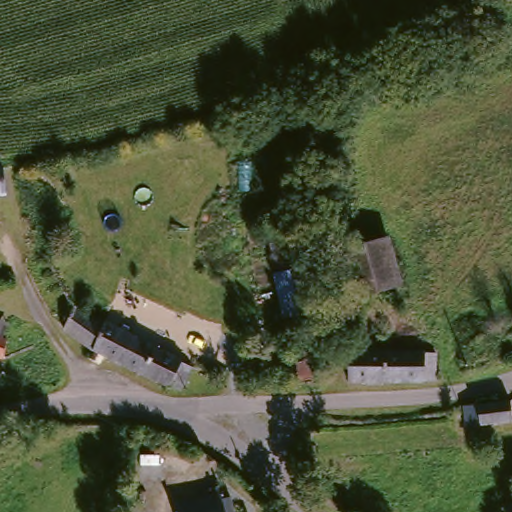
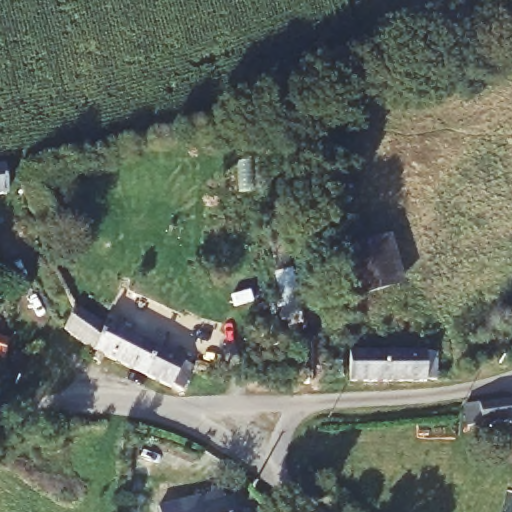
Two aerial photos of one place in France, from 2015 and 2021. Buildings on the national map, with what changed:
unchanged [(0,192),(0,167),(8,166),(8,191),(0,192)]
unchanged [(401,239),(408,288),(356,297),(348,247),(401,239)]
unchanged [(304,262),(316,311),(282,319),(273,269),(304,262)]
unchanged [(78,310),(102,329),(139,345),(130,369),(88,351),(58,329),(78,310)]
unchanged [(0,351),(0,331),(16,334),(13,354),(0,351)]
unchanged [(130,369),(139,345),(178,361),(176,366),(184,369),(183,373),(179,385),(171,383),(169,387),(130,369)]
unchanged [(336,362),(428,354),(431,374),(421,374),(421,383),(338,386),(338,378),(336,362)]
unchanged [(512,425),(490,428),(471,430),(468,406),(512,401),(512,425)]
unchanged [(179,509),(226,499),(229,512),(179,512),(179,509)]

